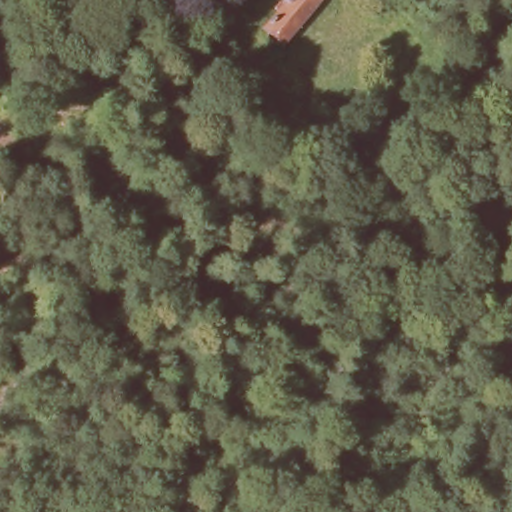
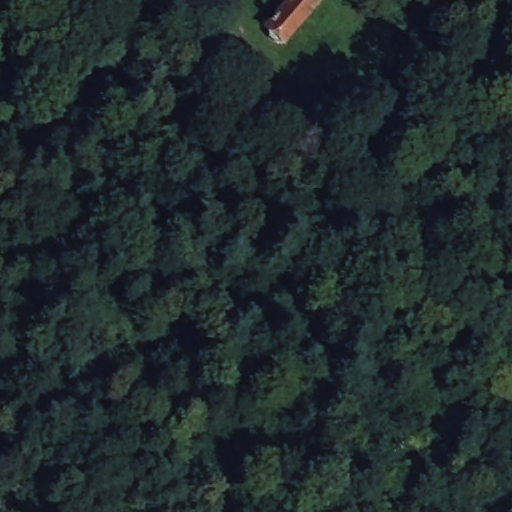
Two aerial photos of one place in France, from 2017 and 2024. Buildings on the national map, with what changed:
unchanged [(315,0),(274,44),(265,40),(259,27),(274,11),(267,4),(271,0),(315,0)]

